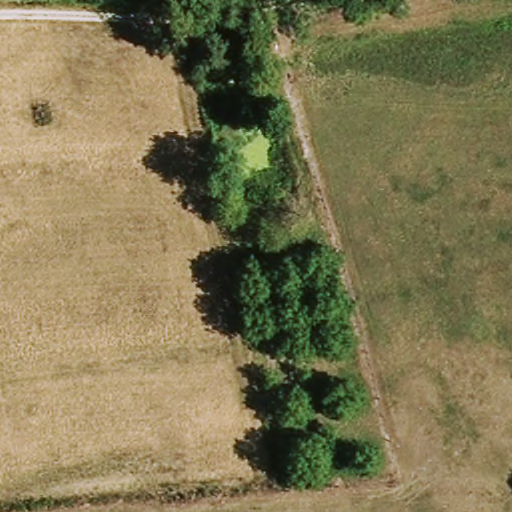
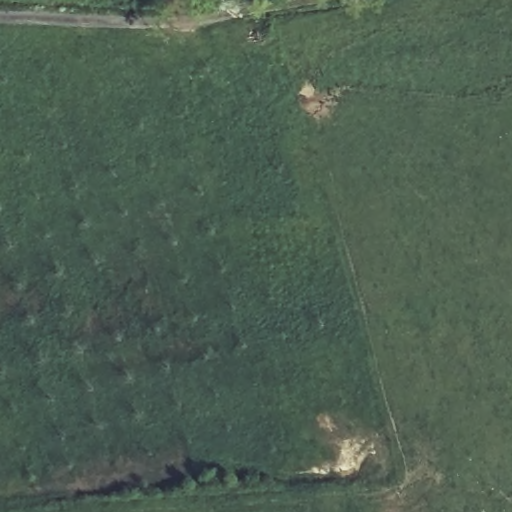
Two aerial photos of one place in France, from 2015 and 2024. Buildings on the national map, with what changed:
[]

